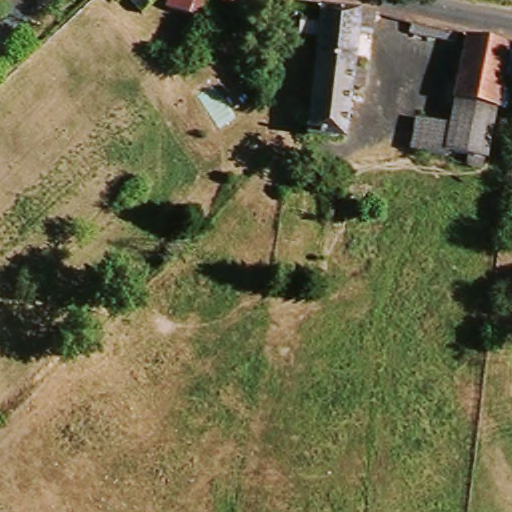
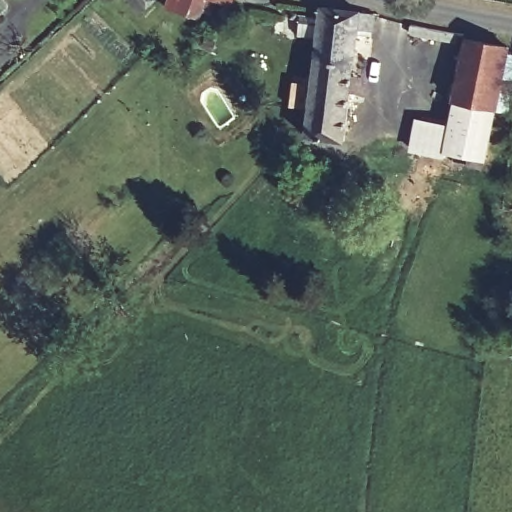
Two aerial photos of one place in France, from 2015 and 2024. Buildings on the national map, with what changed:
unchanged [(114,2),(112,0),(117,0),(114,2)]
unchanged [(142,12),(129,0),(157,0),(142,12)]
unchanged [(217,2),(206,22),(171,8),(174,0),(240,0),(238,6),(217,2)]
unchanged [(361,40),(317,34),(323,0),(333,0),(366,8),(361,40)]
unchanged [(360,55),(367,56),(363,89),(355,88),(354,100),(362,100),(360,116),(350,117),(347,142),(337,141),(302,136),(317,34),(361,40),(360,55)]
unchanged [(497,115),(457,106),(466,37),(505,46),(506,47),(497,115)]
unchanged [(493,144),(501,149),(501,159),(491,156),(490,165),(450,156),(454,124),(457,106),(497,115),(493,144)]
unchanged [(454,124),(450,156),(414,150),(420,117),(454,124)]

